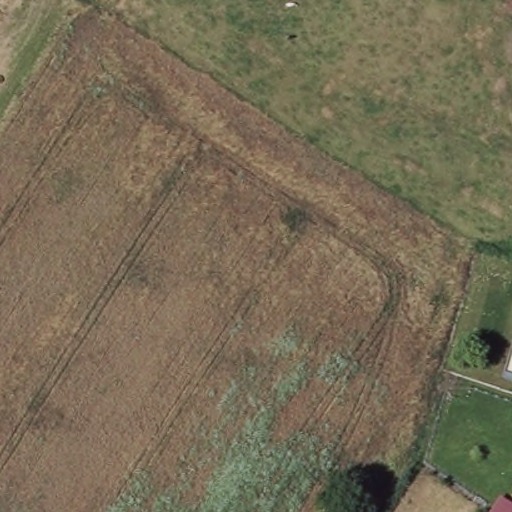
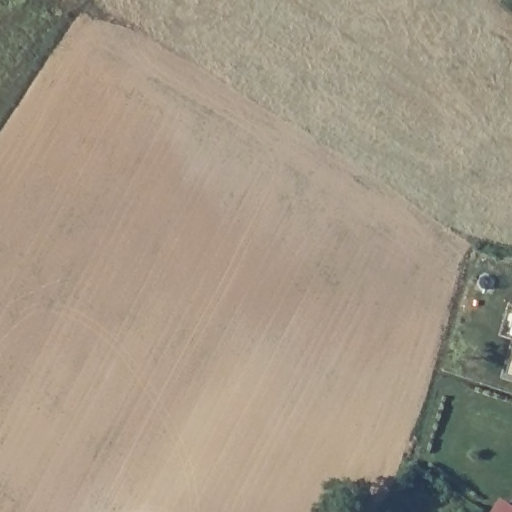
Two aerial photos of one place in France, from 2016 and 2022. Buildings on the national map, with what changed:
unchanged [(509,372),(512,362),(512,373),(509,372)]
unchanged [(462,504),(473,512),(457,512),(462,504)]

